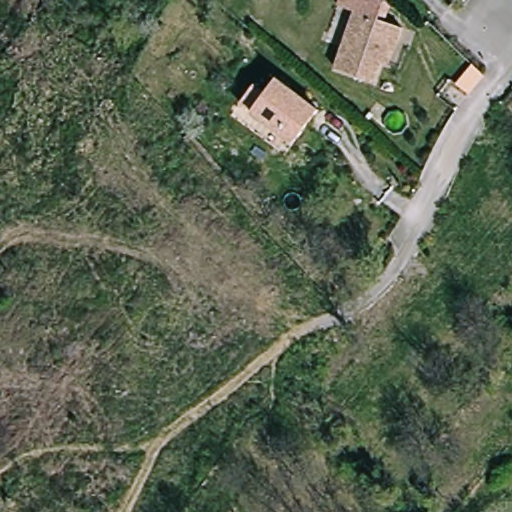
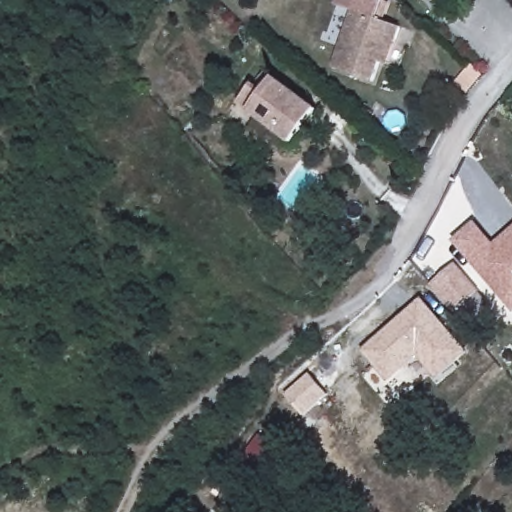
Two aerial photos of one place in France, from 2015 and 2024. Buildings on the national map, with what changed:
unchanged [(377,72),(366,91),(330,71),(360,19),(347,11),(353,0),(369,0),(395,15),(388,28),(393,31),(390,35),(404,43),(397,56),(385,77),(377,72)]
unchanged [(252,87),(263,95),(274,80),(318,110),(294,146),(238,107),(252,87)]
new [(495,245),(512,231),(512,306),(455,241),(476,222),(495,245)]
new [(457,263),(482,292),(457,313),(432,285),(457,263)]
new [(423,299),(470,353),(440,380),(419,356),(390,382),(363,351),(423,299)]

